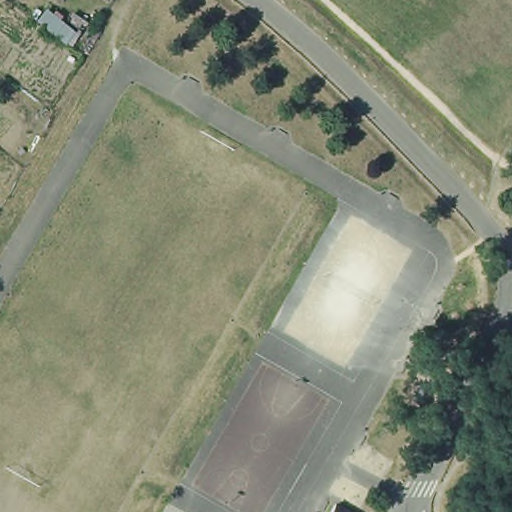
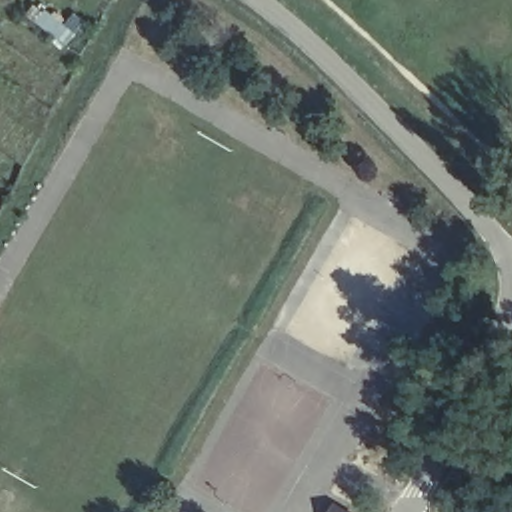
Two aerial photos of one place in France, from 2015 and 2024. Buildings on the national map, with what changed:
unchanged [(337,503),(354,512),(332,512),(337,503)]

